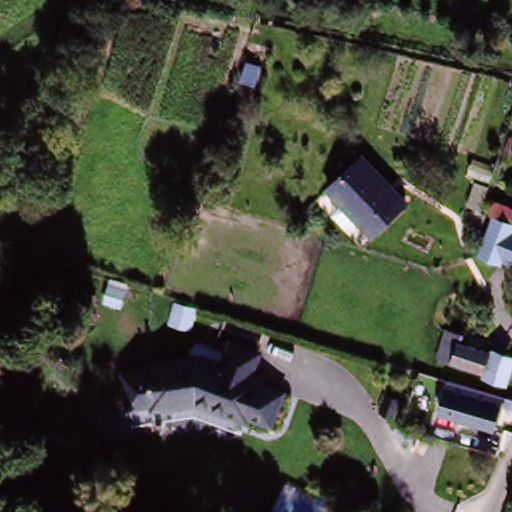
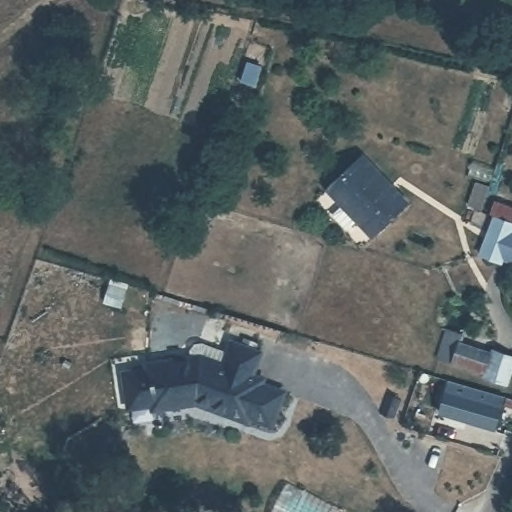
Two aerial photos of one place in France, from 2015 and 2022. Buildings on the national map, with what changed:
unchanged [(406,197),(371,231),(356,216),(346,226),(331,210),(341,200),(326,185),(362,151),(406,197)]
unchanged [(481,189),(473,213),(458,208),(466,184),(481,189)]
unchanged [(512,268),(493,260),(492,264),(469,255),(484,218),(481,216),(487,202),(490,202),(493,195),(512,203),(512,224),(509,229),(507,227),(505,233),(512,236),(512,268)]
unchanged [(482,376),(434,359),(445,330),(461,336),(459,343),(486,353),(488,350),(512,359),(512,368),(504,388),(481,380),(482,376)]
unchanged [(189,360),(188,350),(192,344),(200,344),(222,353),(225,345),(257,357),(248,378),(256,382),(255,384),(279,394),(267,425),(244,416),(242,422),(196,404),(153,409),(152,404),(126,407),(123,374),(146,372),(145,365),(189,360)]
unchanged [(437,413),(446,380),(504,398),(495,431),(437,413)]
unchanged [(409,415),(413,405),(417,406),(419,402),(415,399),(416,395),(423,397),(422,400),(428,403),(428,408),(432,411),(428,423),(409,415)]
unchanged [(403,401),(396,420),(382,414),(389,396),(403,401)]
unchanged [(345,512),(274,512),(289,481),(346,509),(345,512)]

